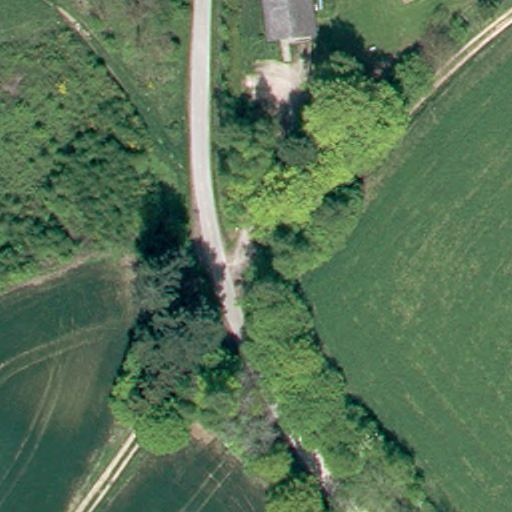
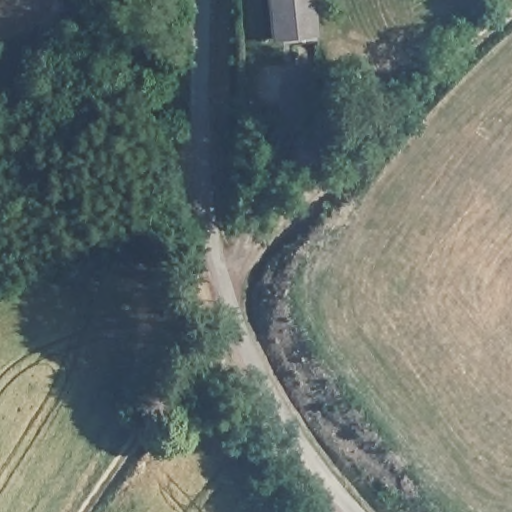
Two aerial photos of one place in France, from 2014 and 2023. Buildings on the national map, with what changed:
unchanged [(269,39),(266,0),(319,0),(320,31),(269,39)]

